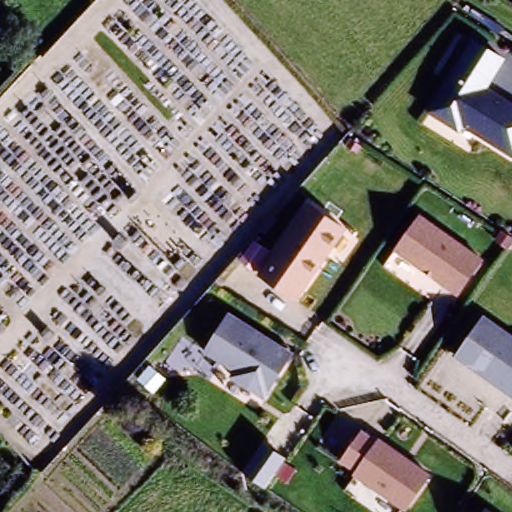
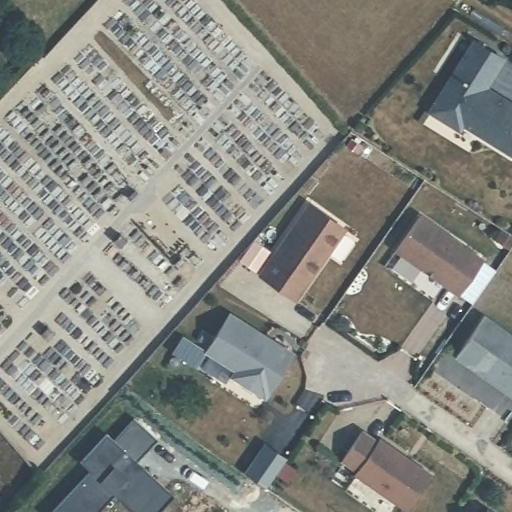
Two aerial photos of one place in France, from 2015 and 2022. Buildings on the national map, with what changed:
unchanged [(488,95),(512,107),(512,160),(420,114),(469,39),(509,60),(488,95)]
unchanged [(258,276),(305,204),(342,229),(295,300),(258,276)]
unchanged [(483,263),(461,298),(396,255),(420,220),(483,263)]
unchanged [(293,350),(267,395),(234,376),(237,369),(205,351),(226,314),(293,350)]
unchanged [(457,359),(483,320),(512,339),(512,398),(487,381),(489,378),(478,371),(476,374),(457,359)]
new [(90,472),(80,463),(107,434),(115,441),(135,419),(158,441),(131,469),(138,476),(144,469),(175,498),(161,512),(133,512),(115,496),(99,512),(53,512),(90,472)]
unchanged [(358,477),(342,466),(362,436),(378,448),(380,444),(431,479),(409,512),(404,512),(356,479),(358,477)]
new [(265,445),(286,460),(265,489),(245,474),(265,445)]

